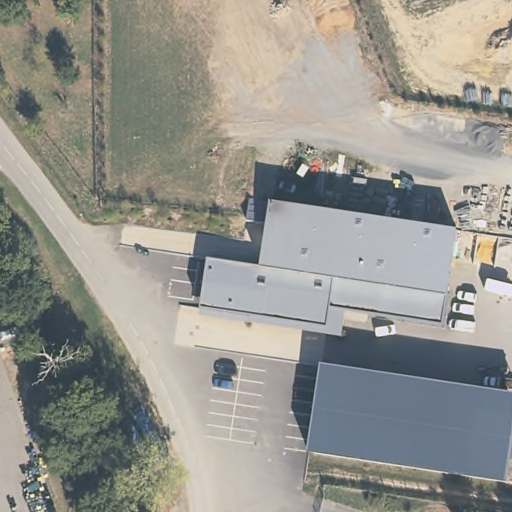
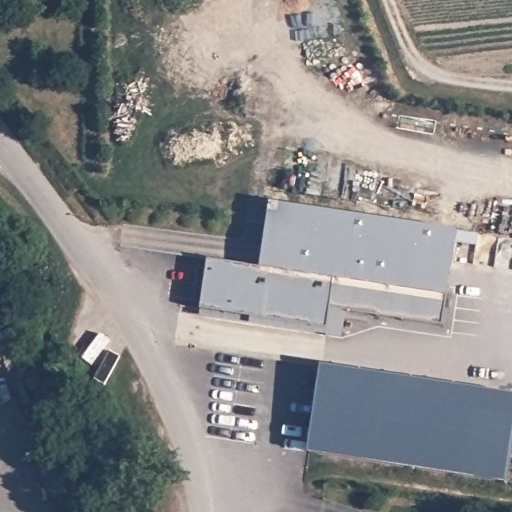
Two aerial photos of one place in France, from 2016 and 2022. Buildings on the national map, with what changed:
unchanged [(443,325),(345,311),(342,335),(200,315),(207,260),(261,267),(269,225),(247,221),(249,200),(457,231),(443,325)]
unchanged [(512,395),(512,452),(507,483),(311,454),(322,368),(512,395)]

